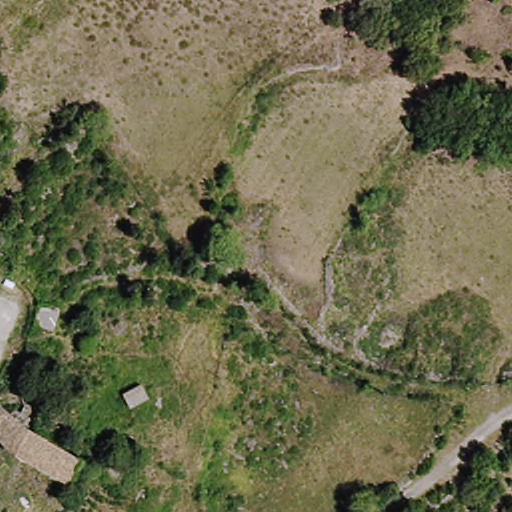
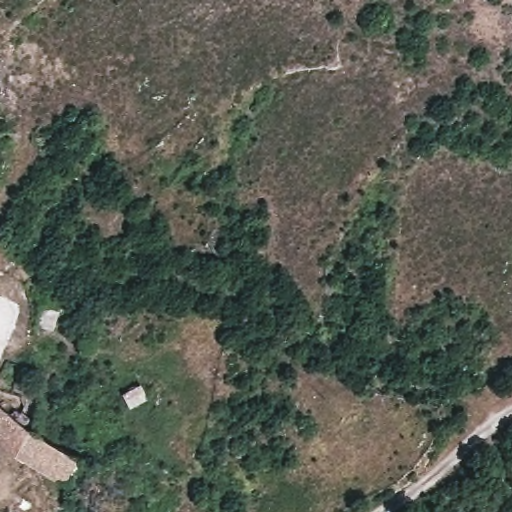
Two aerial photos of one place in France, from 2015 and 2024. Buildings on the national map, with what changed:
unchanged [(17,452),(5,444),(0,434),(0,404),(3,398),(83,451),(72,473),(70,480),(17,452)]

